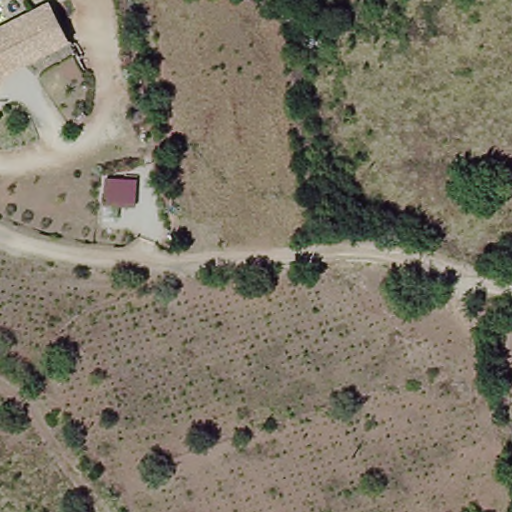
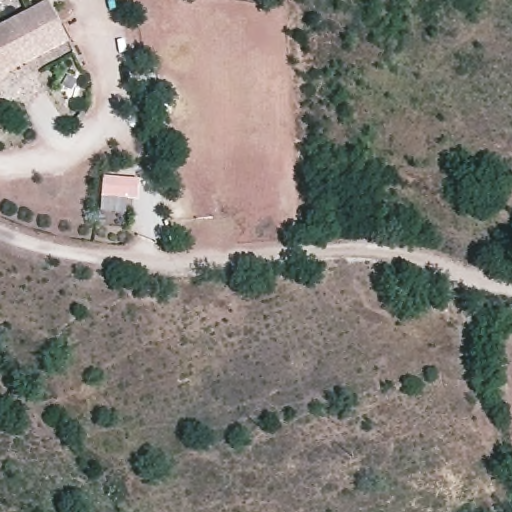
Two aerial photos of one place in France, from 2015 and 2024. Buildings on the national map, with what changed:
unchanged [(68,42),(22,62),(8,69),(0,77),(0,26),(50,4),(68,42)]
unchanged [(104,179),(134,180),(133,205),(104,204),(104,179)]

